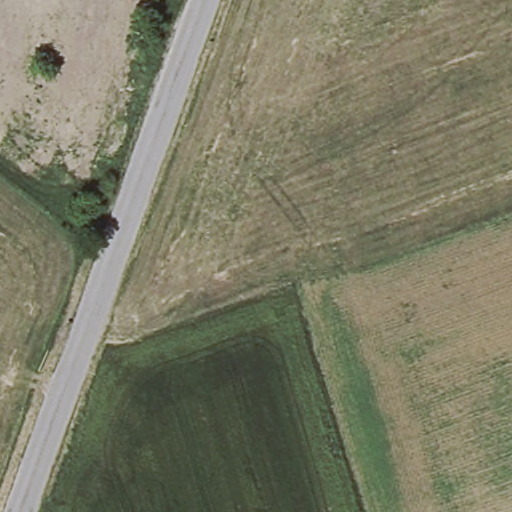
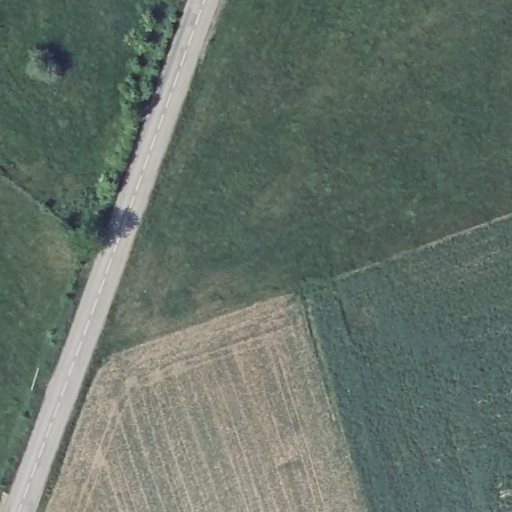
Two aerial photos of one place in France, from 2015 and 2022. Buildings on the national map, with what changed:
[]

